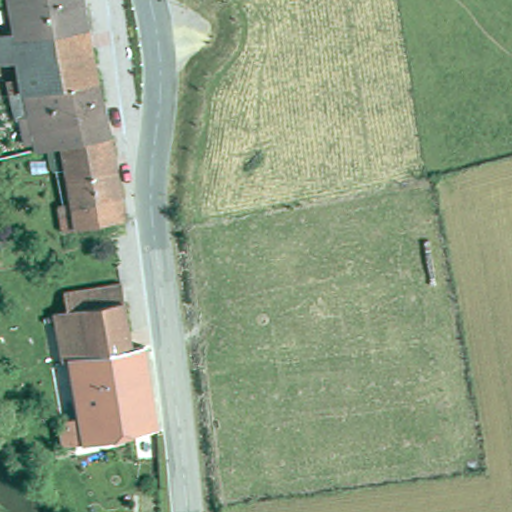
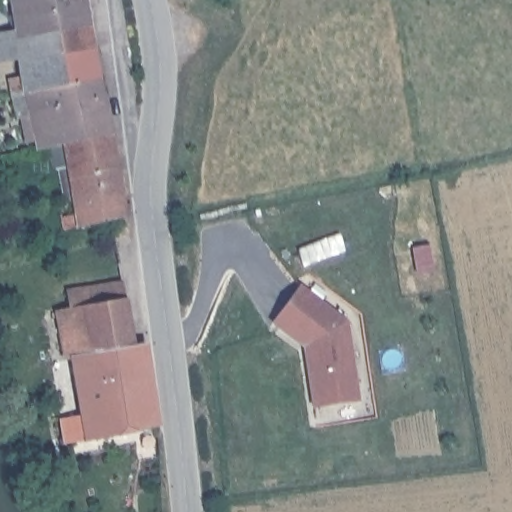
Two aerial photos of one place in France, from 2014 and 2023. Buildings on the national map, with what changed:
unchanged [(40,149),(33,115),(20,118),(15,92),(27,89),(21,58),(0,62),(0,33),(16,29),(11,0),(84,0),(110,134),(64,144),(40,149)]
unchanged [(64,144),(110,134),(122,195),(76,205),(64,144)]
unchanged [(125,218),(80,227),(76,205),(122,195),(125,218)]
unchanged [(77,435),(69,382),(80,380),(77,361),(71,361),(63,305),(74,304),(71,286),(127,277),(137,341),(150,340),(162,424),(77,435)]
new [(348,320),(360,401),(310,409),(302,347),(270,324),(298,284),(348,320)]

